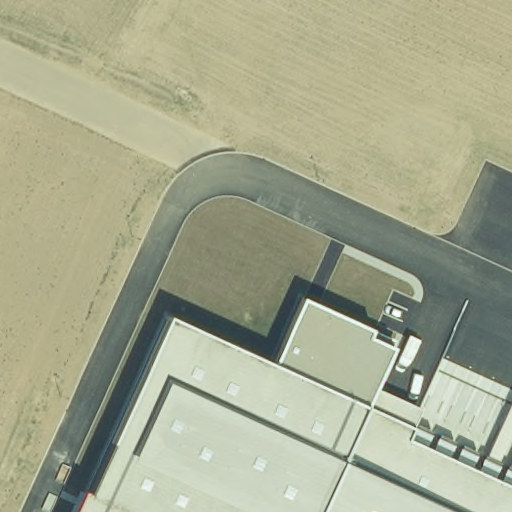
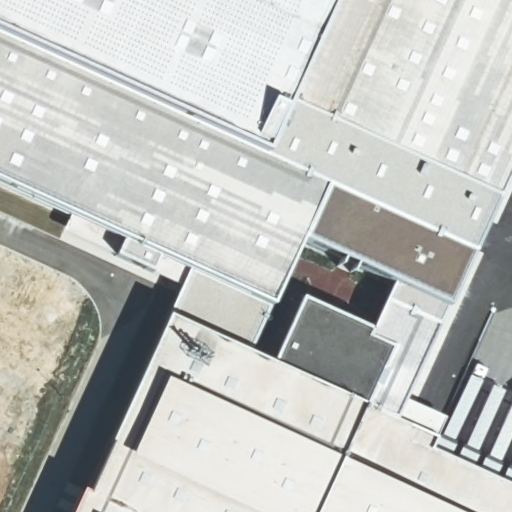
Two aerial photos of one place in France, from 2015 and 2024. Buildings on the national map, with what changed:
new [(306,227),(275,303),(0,181),(0,0),(512,0),(512,164),(452,293),(306,227)]
unchanged [(152,355),(170,316),(272,362),(301,300),(371,330),(367,339),(390,349),(373,388),(420,410),(412,428),(512,473),(512,512),(77,512),(152,355)]

